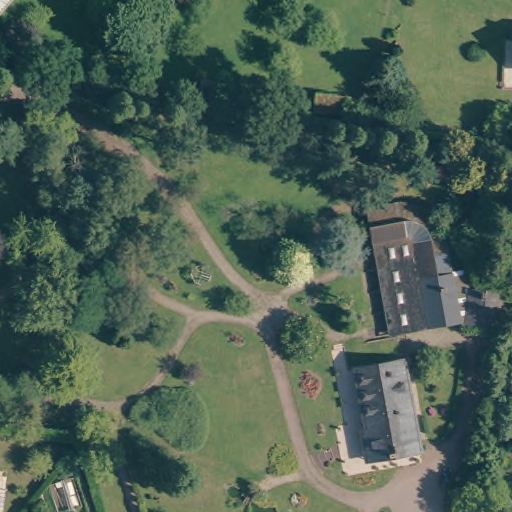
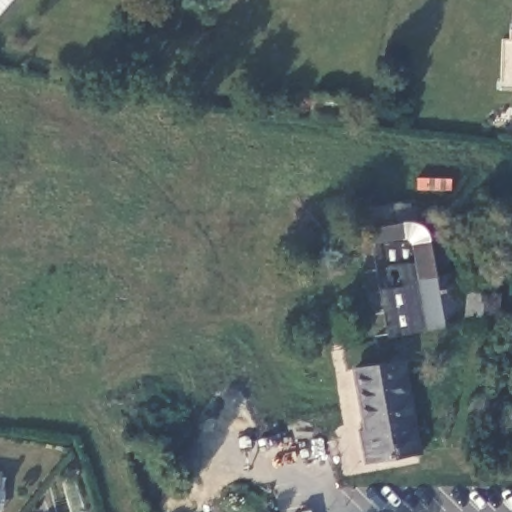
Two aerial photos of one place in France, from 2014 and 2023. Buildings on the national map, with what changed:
unchanged [(381,222),(390,222),(400,224),(408,227),(417,233),(426,241),(430,246),(432,251),(452,248),(466,313),(395,330),(372,224),(381,222)]
unchanged [(507,285),(503,324),(472,321),(477,281),(507,285)]
unchanged [(407,355),(423,443),(401,448),(401,451),(372,456),(367,427),(373,426),(361,364),(401,357),(407,355)]
unchanged [(512,482),(512,505),(511,505),(512,482)]

